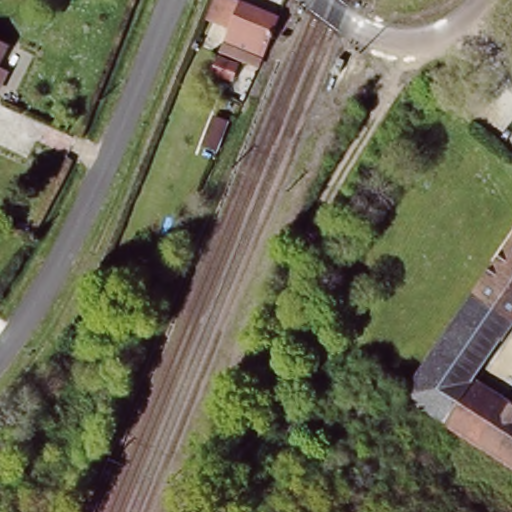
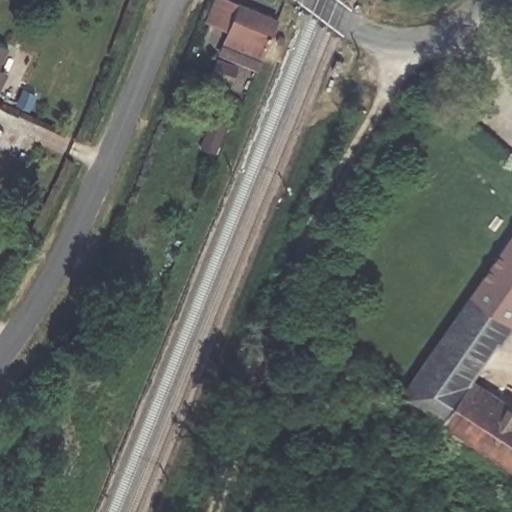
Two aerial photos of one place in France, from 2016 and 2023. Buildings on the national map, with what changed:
unchanged [(209,10),(213,0),(247,0),(267,8),(280,14),(264,50),(227,36),(233,22),(209,10)]
unchanged [(9,46),(0,63),(0,41),(9,46)]
unchanged [(237,64),(255,71),(250,83),(232,77),(237,64)]
unchanged [(0,84),(0,70),(5,73),(0,84)]
unchanged [(231,122),(245,128),(233,157),(220,152),(231,122)]
unchanged [(490,219),(504,200),(512,205),(512,337),(485,382),(512,401),(512,471),(398,396),(505,230),(490,219)]

